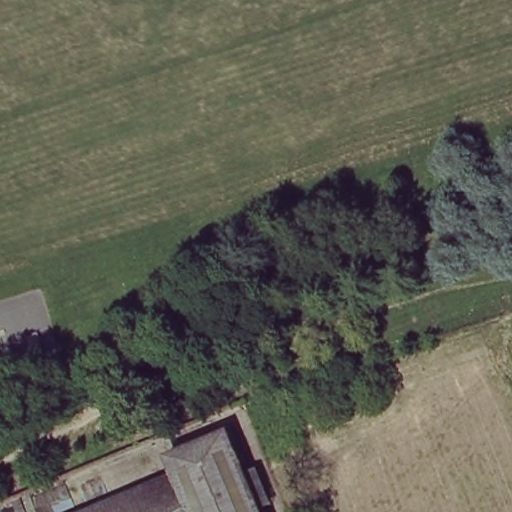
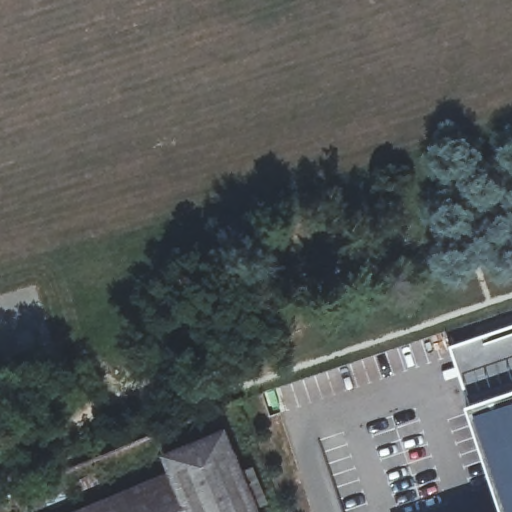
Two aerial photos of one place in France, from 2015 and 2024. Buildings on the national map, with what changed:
new [(499,512),(464,406),(450,347),(512,326),(512,512),(499,512)]
unchanged [(162,452),(221,427),(239,471),(252,467),(268,502),(253,507),(255,512),(67,512),(169,471),(162,452)]

